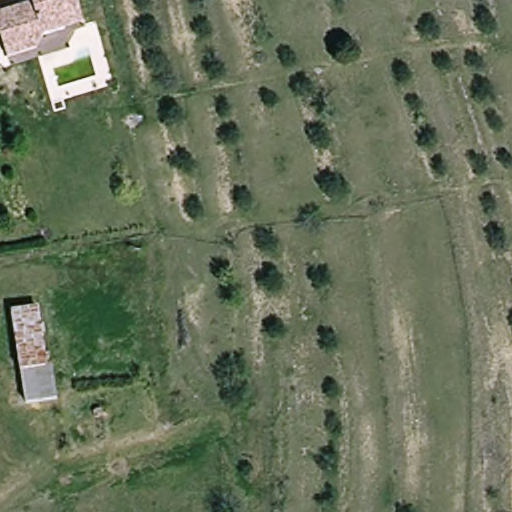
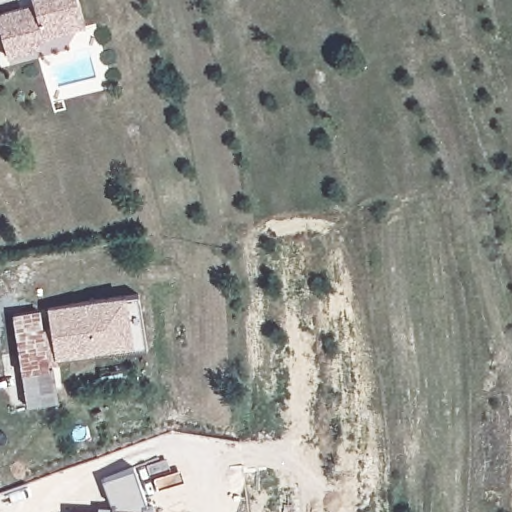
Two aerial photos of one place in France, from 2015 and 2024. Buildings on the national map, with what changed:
unchanged [(47,47),(41,59),(12,68),(0,28),(0,26),(38,15),(35,5),(43,3),(42,0),(78,0),(83,15),(88,34),(69,40),(47,47)]
new [(47,305),(123,293),(132,344),(56,356),(47,305)]
unchanged [(17,312),(43,307),(59,400),(30,403),(17,312)]
new [(71,511),(98,511),(99,505),(113,504),(102,478),(134,466),(151,508),(153,508),(153,512),(71,512),(71,511)]

